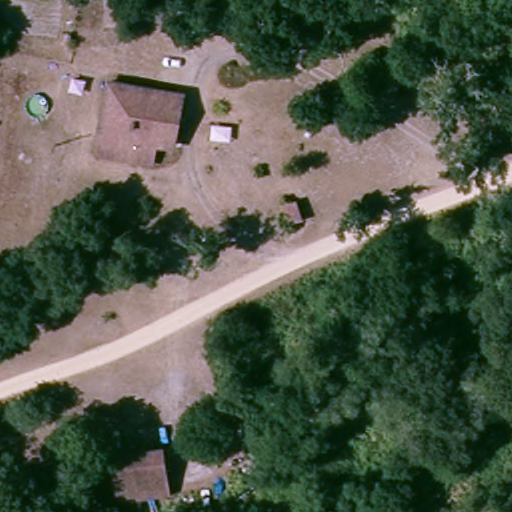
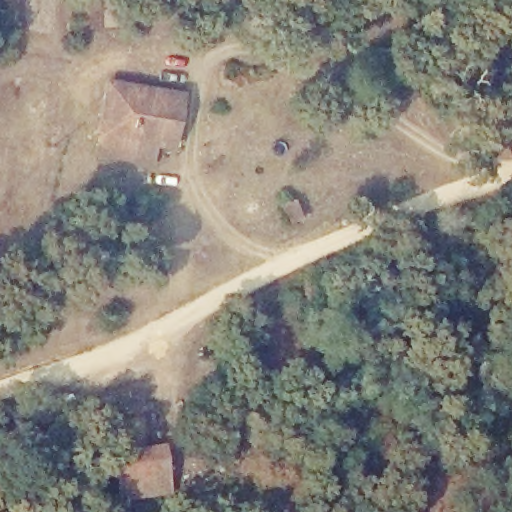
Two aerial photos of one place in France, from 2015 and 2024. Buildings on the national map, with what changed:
unchanged [(341,29),(319,28),(321,9),(342,11),(341,29)]
unchanged [(162,137),(145,134),(97,127),(106,78),(170,84),(162,137)]
unchanged [(145,134),(141,165),(94,156),(97,127),(145,134)]
unchanged [(163,444),(168,504),(168,506),(166,506),(112,511),(107,449),(163,444)]

